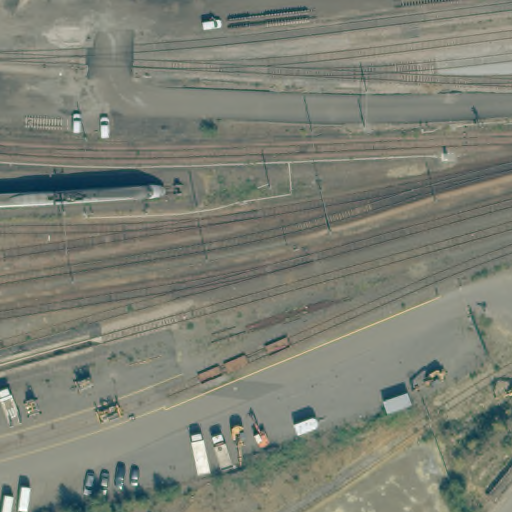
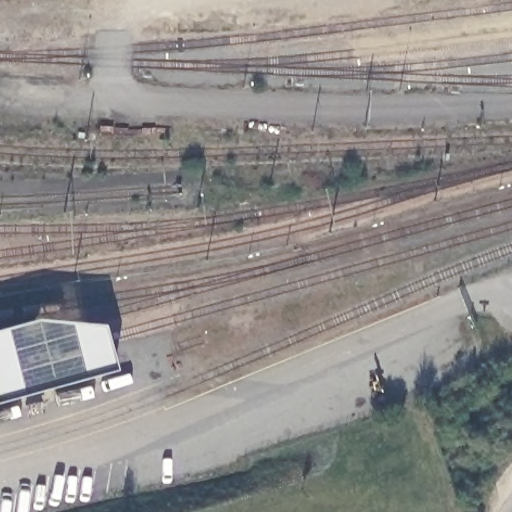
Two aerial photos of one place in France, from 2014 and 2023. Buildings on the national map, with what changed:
new [(113,373),(0,404),(0,331),(33,322),(101,328),(113,373)]

